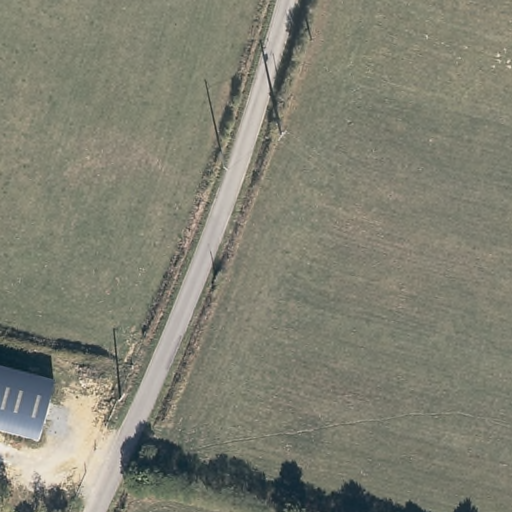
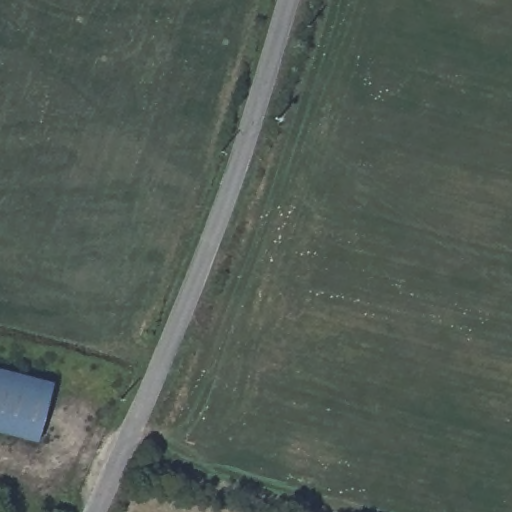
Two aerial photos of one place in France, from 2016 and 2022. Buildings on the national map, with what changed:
unchanged [(0,370),(55,384),(41,442),(0,431),(0,370)]

